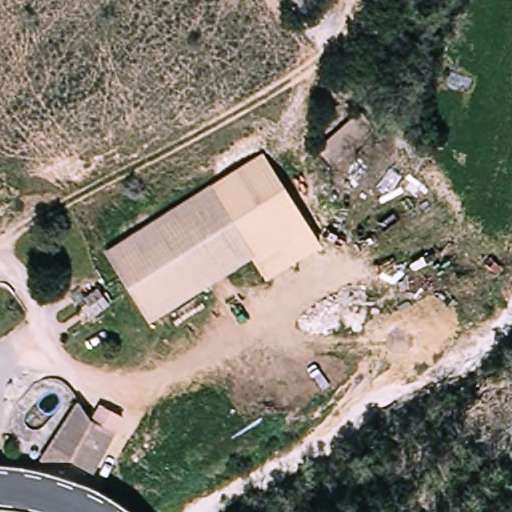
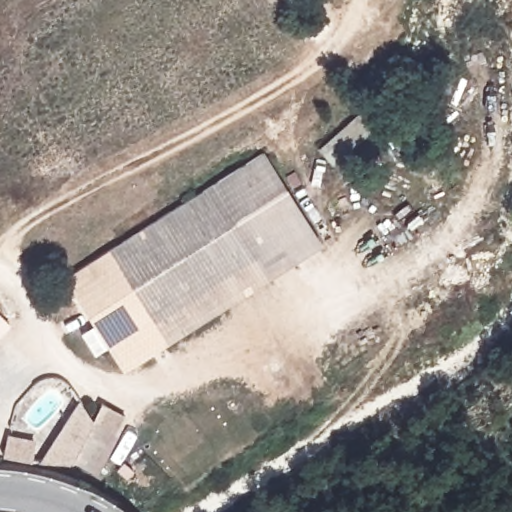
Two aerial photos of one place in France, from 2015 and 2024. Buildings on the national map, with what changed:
unchanged [(365,111),(383,137),(340,172),(325,151),(365,111)]
unchanged [(261,256),(215,186),(265,156),(323,245),(265,282),(253,261),(261,256)]
new [(123,371),(64,278),(215,186),(112,253),(158,323),(253,261),(265,282),(123,371)]
unchanged [(215,186),(261,256),(158,323),(112,253),(215,186)]
new [(0,333),(0,313),(10,323),(0,333)]
unchanged [(79,405),(96,425),(74,464),(43,466),(79,405)]
unchanged [(96,425),(118,438),(96,477),(74,464),(96,425)]

